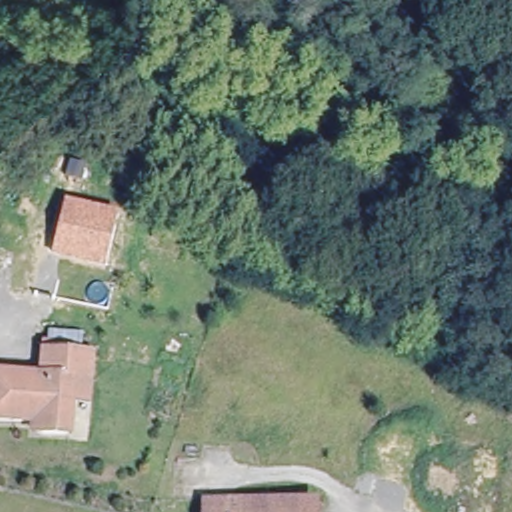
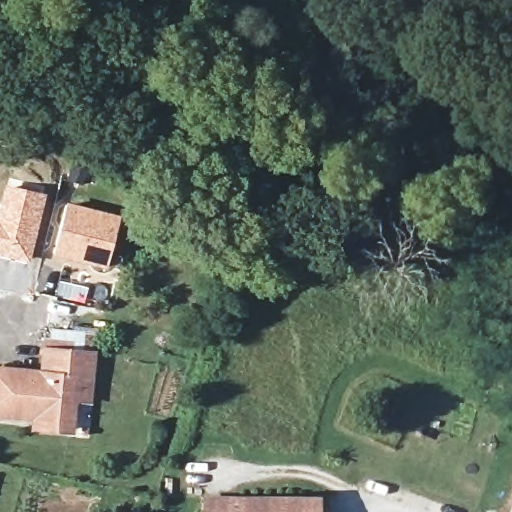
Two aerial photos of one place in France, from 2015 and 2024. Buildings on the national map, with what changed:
new [(46,192),(28,264),(0,257),(0,198),(4,184),(46,192)]
unchanged [(119,217),(108,268),(52,255),(65,203),(119,217)]
unchanged [(0,412),(0,366),(49,371),(51,347),(98,351),(96,376),(94,397),(79,396),(76,427),(49,425),(40,424),(41,415),(0,412)]
unchanged [(323,501),(323,512),(211,512),(211,499),(323,501)]

